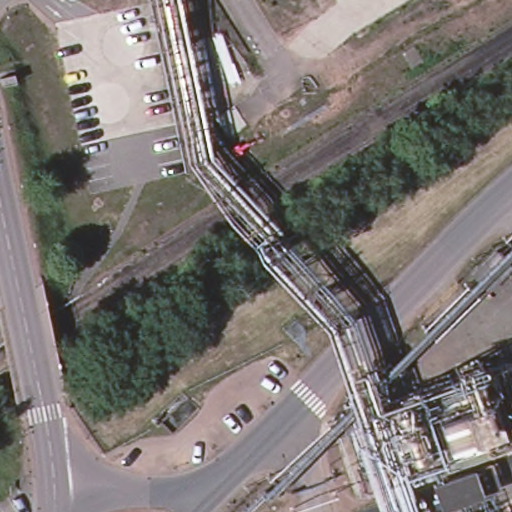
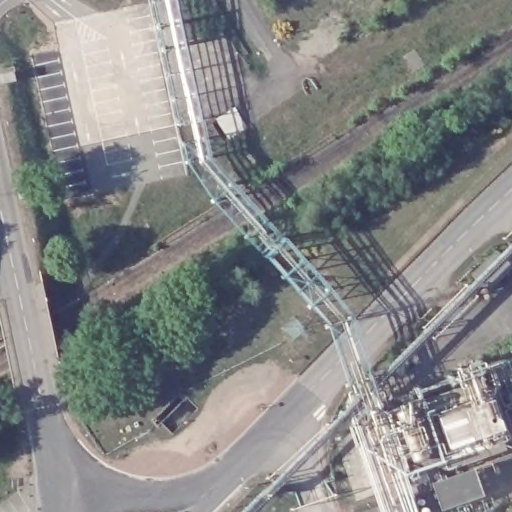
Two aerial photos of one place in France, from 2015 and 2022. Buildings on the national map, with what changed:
unchanged [(346,0),(397,0),(359,22),(346,0)]
unchanged [(375,482),(354,425),(506,365),(512,382),(512,434),(388,483),(377,488),(375,482)]
unchanged [(492,461),(502,487),(442,508),(429,480),(492,461)]

